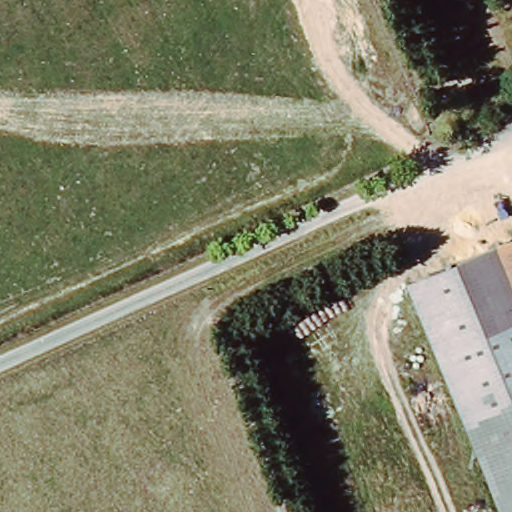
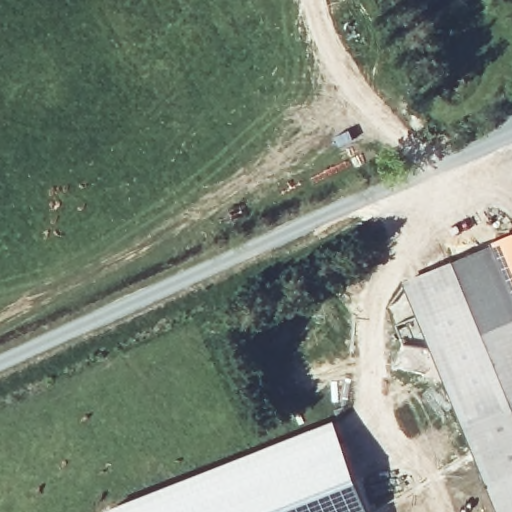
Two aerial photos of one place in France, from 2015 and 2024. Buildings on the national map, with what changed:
unchanged [(512,245),(512,278),(500,250),(512,245)]
unchanged [(491,491),(405,291),(500,250),(512,278),(512,512),(502,512),(491,491)]
new [(197,471),(335,417),(373,512),(111,512),(109,507),(197,471)]

